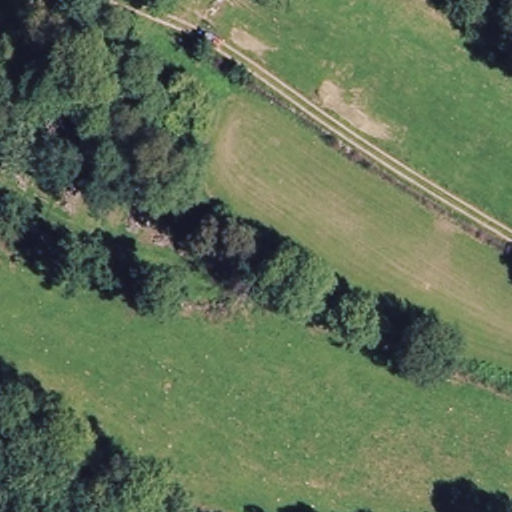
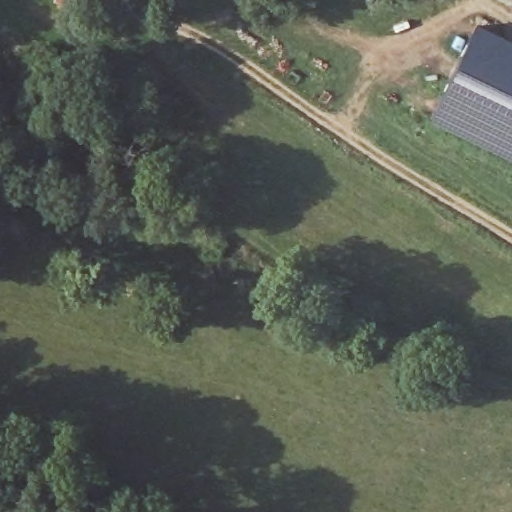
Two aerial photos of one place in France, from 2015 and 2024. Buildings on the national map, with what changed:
new [(512,48),(512,161),(430,121),(474,30),(512,48)]

